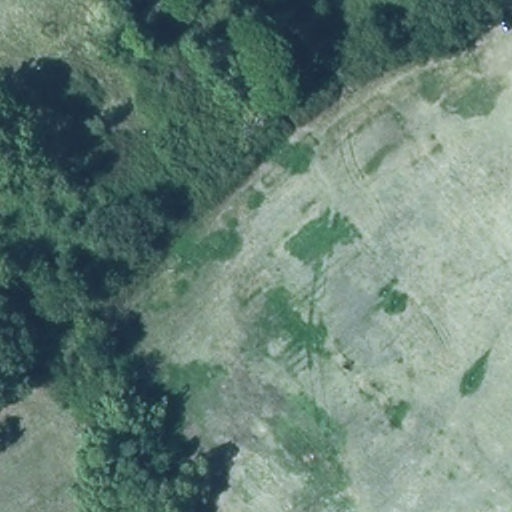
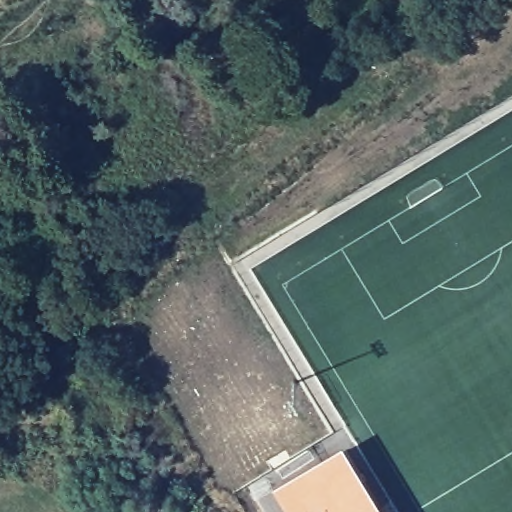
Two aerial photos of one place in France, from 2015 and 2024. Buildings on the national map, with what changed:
new [(387,512),(285,512),(273,491),(346,446),(387,512)]

